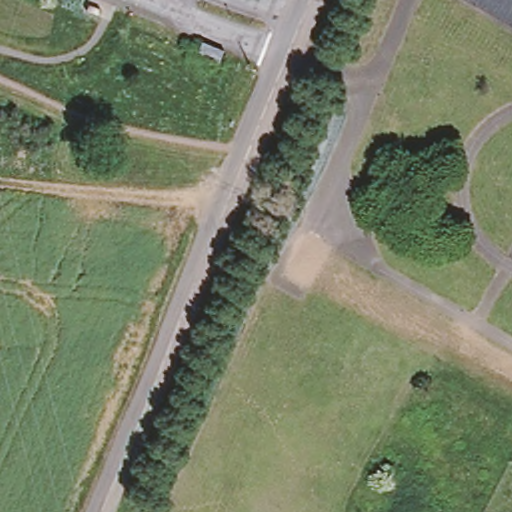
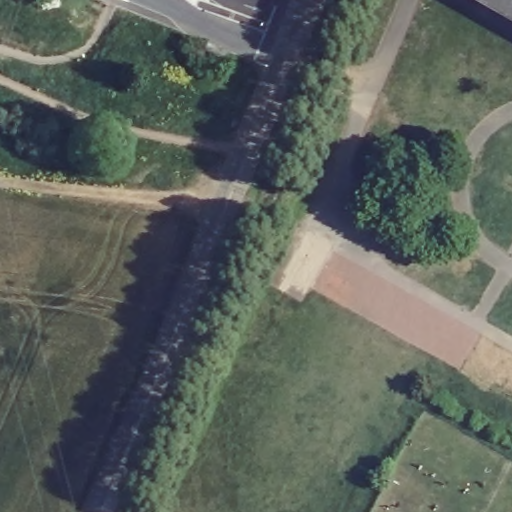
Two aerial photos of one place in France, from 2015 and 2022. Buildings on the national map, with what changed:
unchanged [(512,0),(512,22),(472,0),(512,0)]
unchanged [(202,56),(206,45),(226,52),(222,65),(202,56)]

